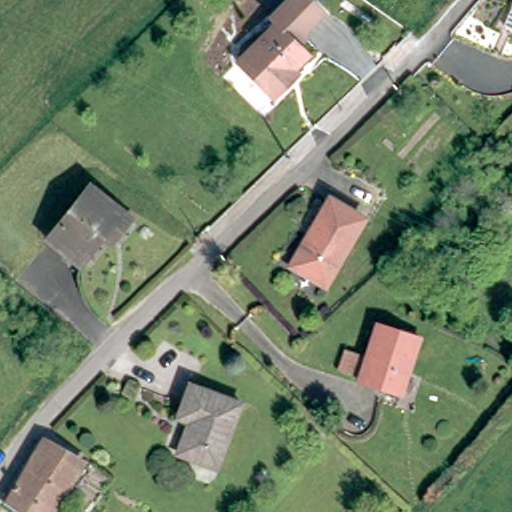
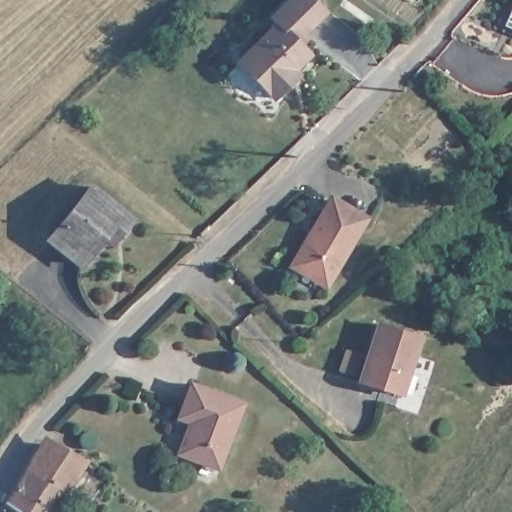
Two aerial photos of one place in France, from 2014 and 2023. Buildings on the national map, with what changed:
unchanged [(274,102),(234,67),(266,28),(260,24),(280,4),(284,0),(301,0),(317,12),(297,36),(301,40),(295,48),(306,57),(292,72),(297,75),(290,84),(274,102)]
unchanged [(504,24),(512,2),(512,28),(504,24)]
unchanged [(102,234),(80,261),(50,237),(93,187),(131,218),(117,235),(112,241),(102,234)]
unchanged [(319,285),(290,263),(332,199),(362,219),(319,285)]
unchanged [(356,381),(373,323),(419,337),(409,369),(401,395),(394,392),(356,381)]
unchanged [(246,402),(221,468),(180,452),(194,417),(181,411),(195,382),(246,402)]
unchanged [(85,468),(56,512),(23,512),(7,501),(0,497),(0,496),(5,489),(12,494),(46,442),(85,468)]

